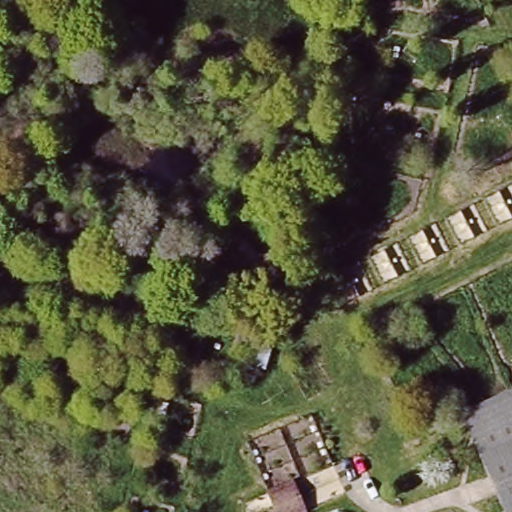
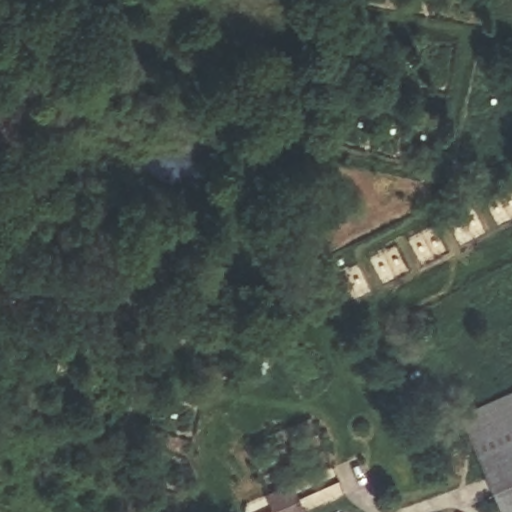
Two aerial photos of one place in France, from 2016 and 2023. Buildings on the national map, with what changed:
unchanged [(283,161),(330,238),(294,261),(267,223),(283,161)]
unchanged [(471,417),(512,399),(512,448),(489,458),(471,417)]
unchanged [(511,512),(491,465),(489,458),(512,448),(512,512),(511,512)]
unchanged [(279,512),(270,495),(300,485),(312,512),(279,512)]

